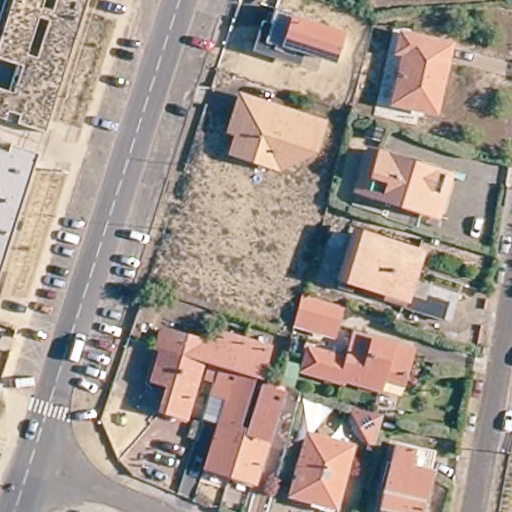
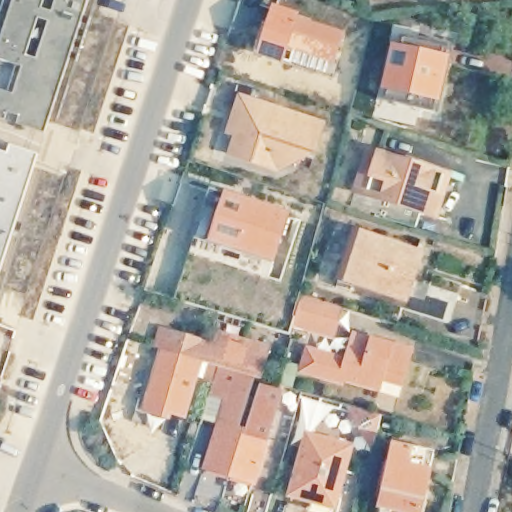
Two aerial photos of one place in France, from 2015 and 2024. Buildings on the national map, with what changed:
unchanged [(20,79),(23,68),(0,61),(0,45),(14,0),(46,0),(43,10),(61,15),(66,0),(90,0),(61,92),(47,135),(25,128),(28,119),(10,113),(7,122),(0,120),(0,90),(15,95),(20,79)]
unchanged [(271,26),(276,11),(313,22),(311,28),(341,38),(332,67),(303,58),(300,69),(252,54),(262,24),(271,26)]
unchanged [(445,54),(430,120),(389,111),(400,61),(394,60),(397,43),(445,54)]
unchanged [(260,146),(255,162),(232,155),(243,120),(235,117),(241,100),(322,126),(313,155),(297,150),(294,157),(260,146)]
unchanged [(12,146),(40,155),(24,206),(0,283),(0,152),(9,155),(12,146)]
unchanged [(375,156),(442,177),(428,219),(362,197),(375,156)]
new [(196,239),(210,190),(226,192),(293,215),(278,266),(196,239)]
unchanged [(390,296),(340,280),(354,236),(422,257),(414,283),(459,297),(451,325),(405,311),(412,290),(394,284),(390,296)]
unchanged [(303,297),(341,310),(333,338),(295,328),(303,297)]
unchanged [(207,383),(212,367),(201,365),(163,353),(158,351),(163,333),(216,349),(220,335),(268,350),(259,381),(253,380),(238,432),(250,436),(263,391),(282,397),(255,485),(207,470),(228,401),(212,396),(215,386),(207,383)]
unchanged [(355,337),(412,353),(401,390),(382,384),(380,392),(344,382),(343,386),(303,375),(309,353),(348,364),(355,337)]
unchanged [(201,365),(185,419),(162,412),(170,387),(154,382),(163,353),(201,365)]
unchanged [(383,418),(376,445),(370,443),(354,416),(356,410),(383,418)]
unchanged [(352,450),(335,510),(292,498),(308,438),(352,450)]
unchanged [(411,512),(381,505),(395,448),(435,458),(422,512),(411,512)]
unchanged [(272,498),(268,512),(251,512),(256,493),(272,498)]

